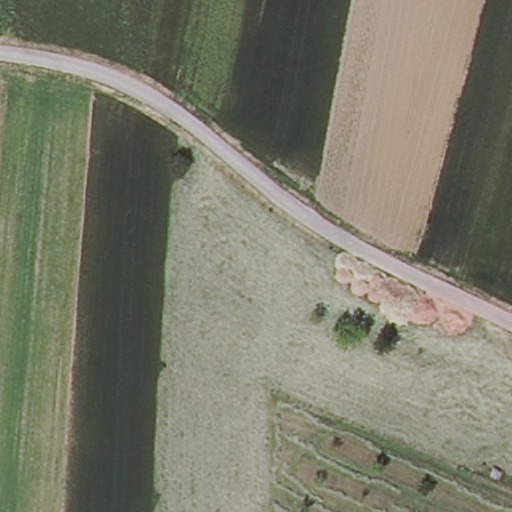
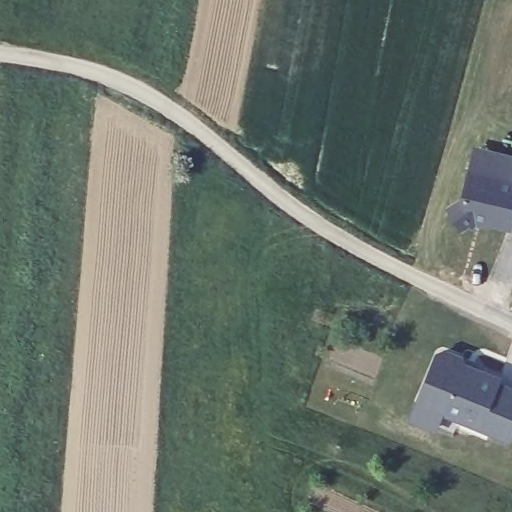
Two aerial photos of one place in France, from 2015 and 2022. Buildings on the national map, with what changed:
new [(477,224),(473,225),(473,224),(462,229),(447,204),(463,191),(475,145),(512,153),(512,229),(477,224)]
new [(468,361),(505,375),(503,380),(512,385),(512,442),(444,413),(436,431),(408,419),(436,350),(447,346),(464,353),(468,361)]

